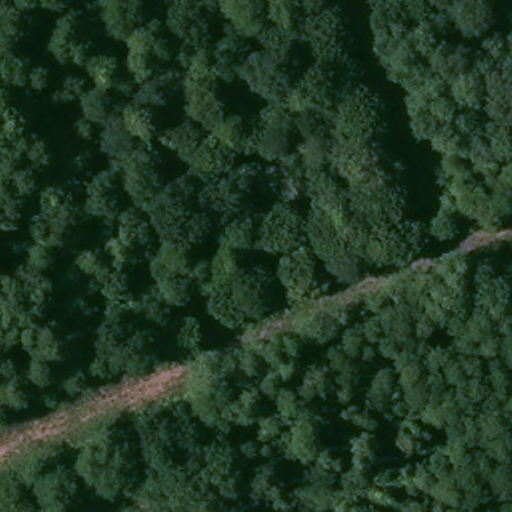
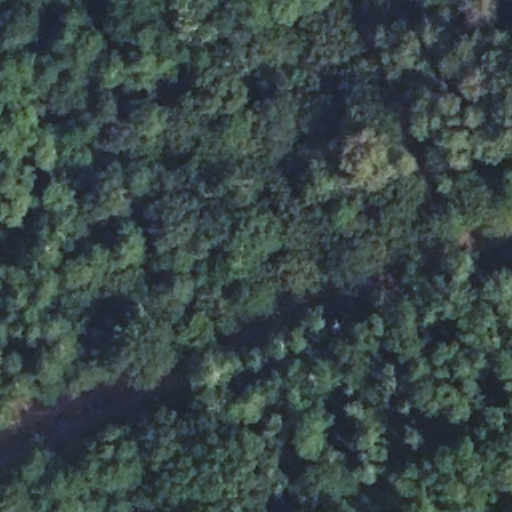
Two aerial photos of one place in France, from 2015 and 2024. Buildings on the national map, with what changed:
unchanged [(243,303),(215,316),(205,292),(232,280),(243,303)]

